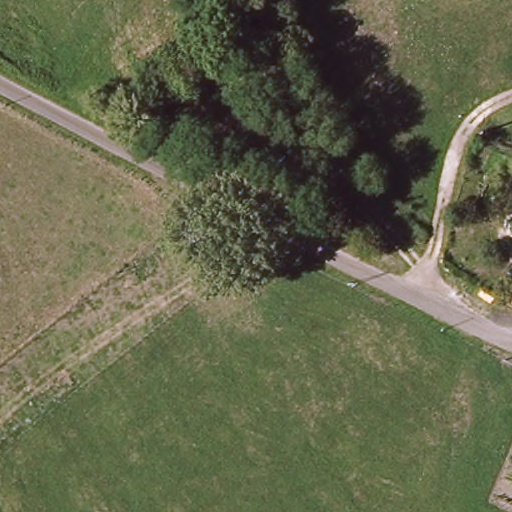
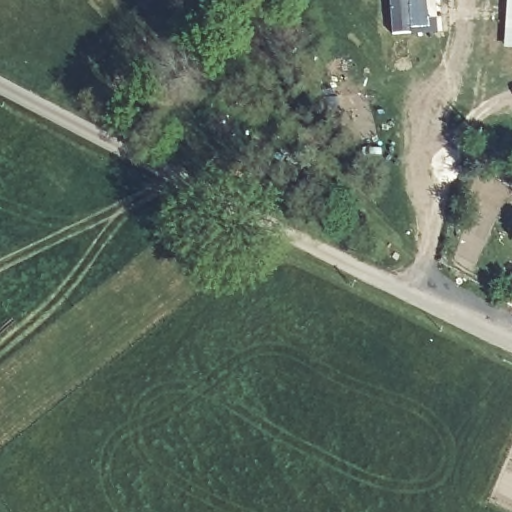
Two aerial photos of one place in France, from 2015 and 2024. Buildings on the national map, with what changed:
new [(432,33),(410,35),(390,36),(388,0),(429,0),(432,33)]
new [(512,50),(502,49),(505,0),(512,0),(512,50)]
demolished [(512,225),(512,241),(507,240),(512,225)]

